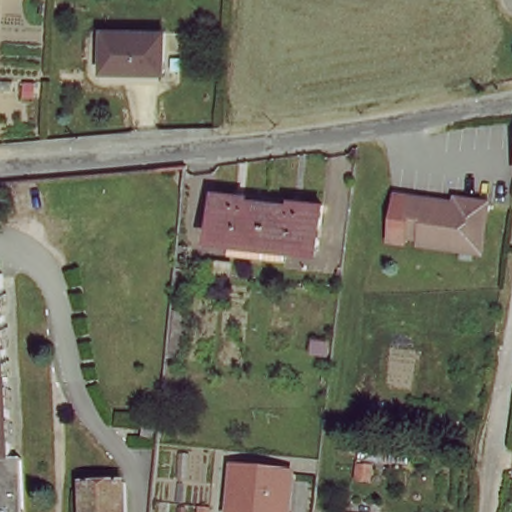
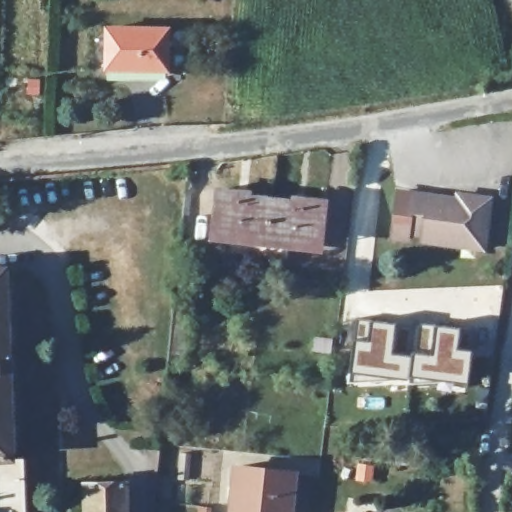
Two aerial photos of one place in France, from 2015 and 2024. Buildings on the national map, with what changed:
unchanged [(111,75),(109,35),(166,30),(169,71),(111,75)]
unchanged [(269,252),(236,249),(237,233),(217,231),(222,187),(253,190),(253,196),(275,198),(269,252)]
unchanged [(477,249),(416,239),(417,233),(401,231),(408,192),(453,199),(453,194),(462,196),(485,199),(477,249)]
unchanged [(297,200),(298,195),(329,198),(324,243),(295,240),(292,255),(269,252),(275,198),(297,200)]
unchanged [(0,429),(0,271),(6,271),(13,429),(0,429)]
new [(476,330),(470,377),(437,373),(436,385),(382,381),(383,372),(347,368),(353,318),(476,330)]
unchanged [(334,344),(333,356),(316,353),(317,341),(334,344)]
unchanged [(13,429),(15,459),(25,459),(27,512),(0,512),(0,429),(13,429)]
unchanged [(294,512),(233,512),(238,467),(298,475),(294,512)]
unchanged [(130,484),(130,512),(89,512),(89,485),(130,484)]

